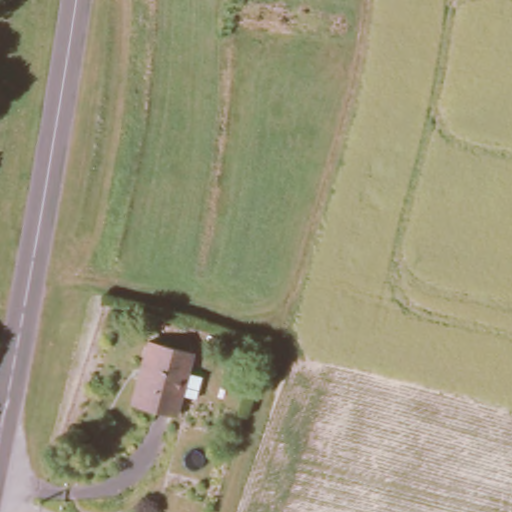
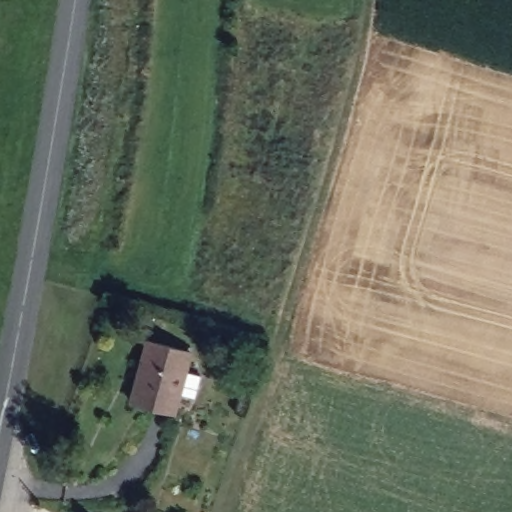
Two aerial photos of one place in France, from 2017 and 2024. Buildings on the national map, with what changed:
unchanged [(127,403),(144,339),(188,351),(170,415),(127,403)]

